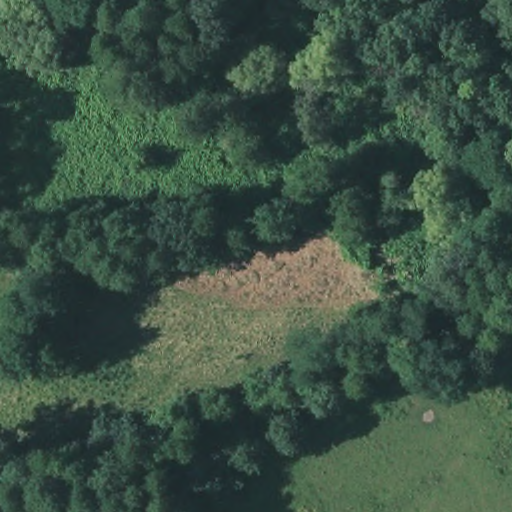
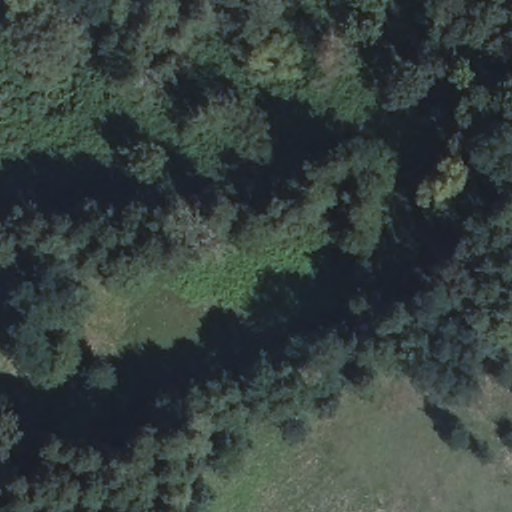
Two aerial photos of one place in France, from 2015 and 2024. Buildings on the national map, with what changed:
unchanged [(59,306),(74,319),(49,349),(34,336),(59,306)]

